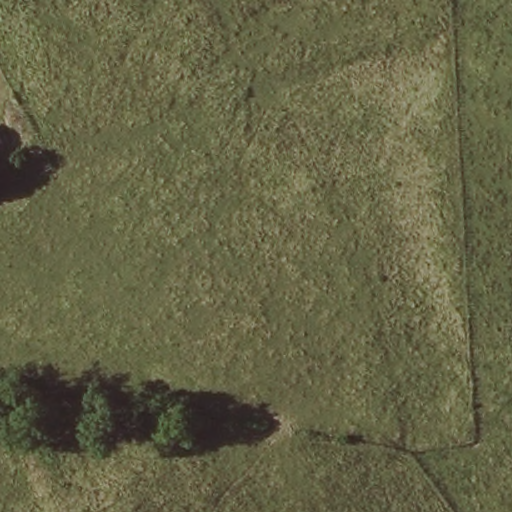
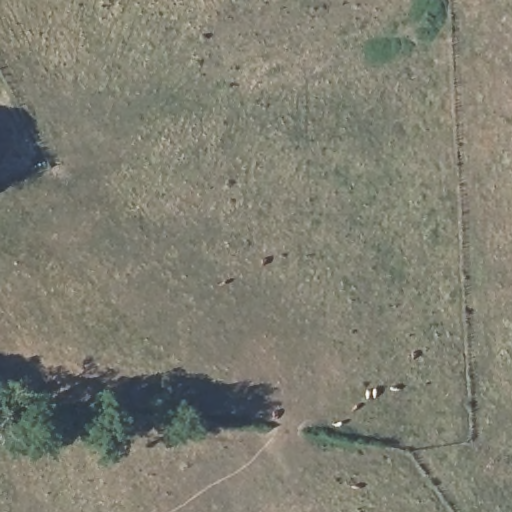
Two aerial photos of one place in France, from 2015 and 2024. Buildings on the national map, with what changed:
[]

